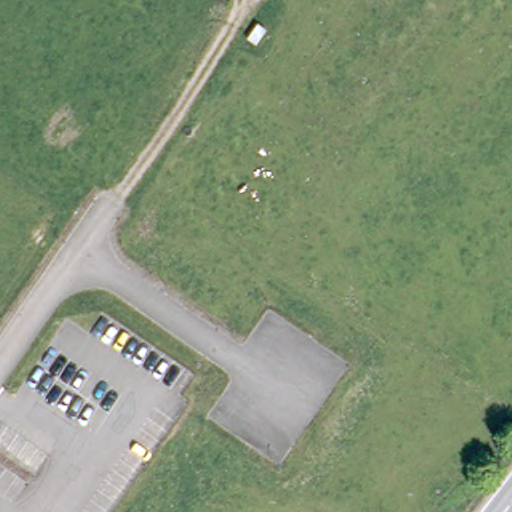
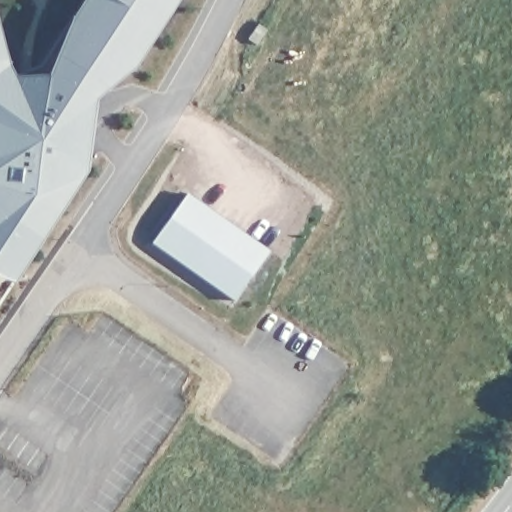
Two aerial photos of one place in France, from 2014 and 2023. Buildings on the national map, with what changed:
new [(68,19),(80,0),(177,0),(133,67),(93,100),(86,172),(59,211),(56,210),(52,207),(81,163),(71,159),(67,133),(90,94),(102,87),(54,55),(68,19)]
unchanged [(258,53),(249,46),(260,31),(269,38),(258,53)]
new [(0,66),(0,43),(5,64),(1,66),(0,66)]
new [(7,82),(45,82),(54,55),(102,87),(90,94),(67,133),(71,159),(81,163),(52,207),(56,210),(15,272),(0,259),(0,66),(1,66),(7,82)]
new [(268,251),(233,301),(153,244),(186,193),(268,251)]

